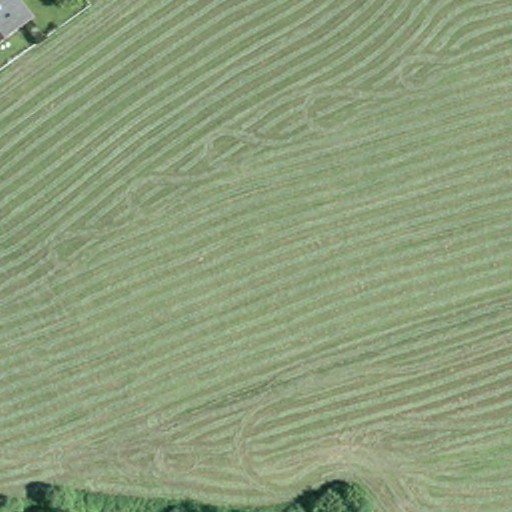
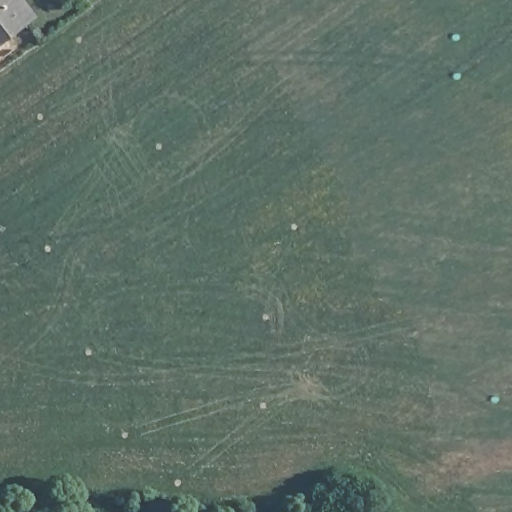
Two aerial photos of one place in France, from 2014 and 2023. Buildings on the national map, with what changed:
unchanged [(0,38),(0,0),(9,0),(23,20),(0,38)]

